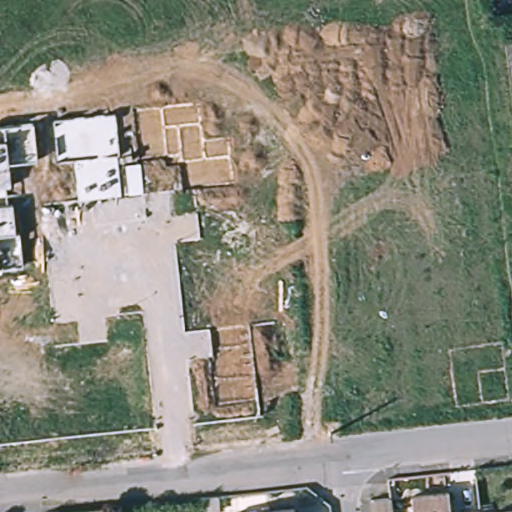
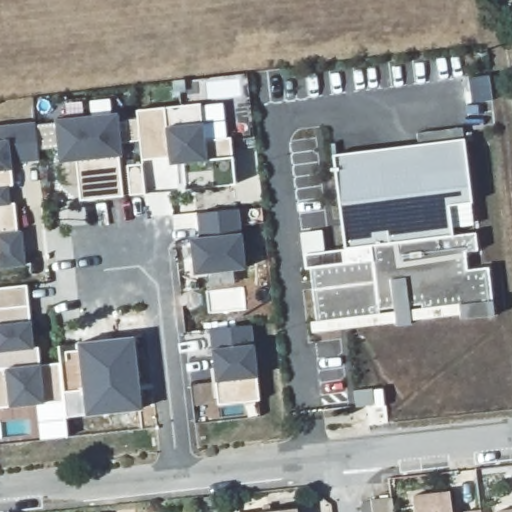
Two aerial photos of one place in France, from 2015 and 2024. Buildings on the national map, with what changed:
unchanged [(222,102),(226,137),(227,155),(231,186),(180,190),(177,164),(167,165),(167,156),(138,160),(134,110),(199,104),(222,102)]
unchanged [(120,157),(127,196),(77,200),(73,161),(55,163),(52,121),(113,115),(120,157)]
unchanged [(35,160),(12,161),(12,170),(5,170),(10,207),(17,207),(21,270),(0,271),(0,123),(28,121),(35,160)]
new [(464,140),(471,203),(446,205),(452,235),(475,233),(478,250),(464,252),(466,272),(488,270),(492,301),(494,316),(460,319),(459,315),(411,321),(412,325),(395,326),(394,323),(311,335),(310,320),(317,320),(310,270),(304,270),(302,252),(345,247),(333,155),(415,146),(416,133),(463,127),(464,140)]
unchanged [(235,236),(239,271),(190,275),(187,239),(195,237),(194,214),(232,210),(235,236)]
new [(27,285),(28,307),(30,322),(33,348),(37,347),(39,365),(58,363),(62,401),(43,404),(7,407),(0,408),(0,289),(27,285)]
unchanged [(249,345),(252,380),(256,400),(216,403),(213,380),(210,348),(215,347),(213,330),(245,326),(249,345)]
new [(133,335),(142,408),(87,416),(64,417),(66,437),(38,440),(35,405),(43,404),(62,401),(58,363),(57,346),(77,342),(133,335)]
unchanged [(411,496),(449,492),(451,512),(413,512),(411,496)]
new [(202,497),(218,496),(219,510),(208,512),(204,512),(202,497)]
unchanged [(391,512),(371,512),(370,500),(389,498),(391,512)]
unchanged [(294,509),(294,512),(265,512),(294,509)]
unchanged [(479,510),(480,512),(463,512),(479,510)]
unchanged [(512,511),(512,512),(505,512),(512,511)]

